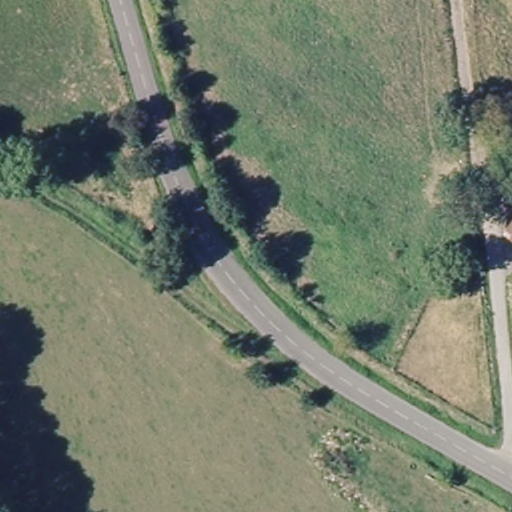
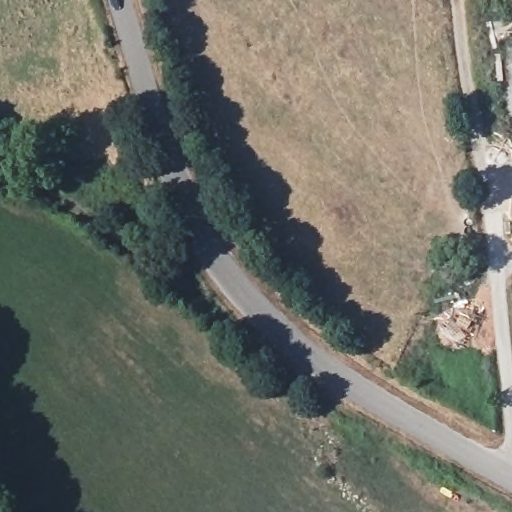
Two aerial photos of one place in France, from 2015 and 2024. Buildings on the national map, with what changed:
unchanged [(505,231),(512,222),(512,236),(505,231)]

